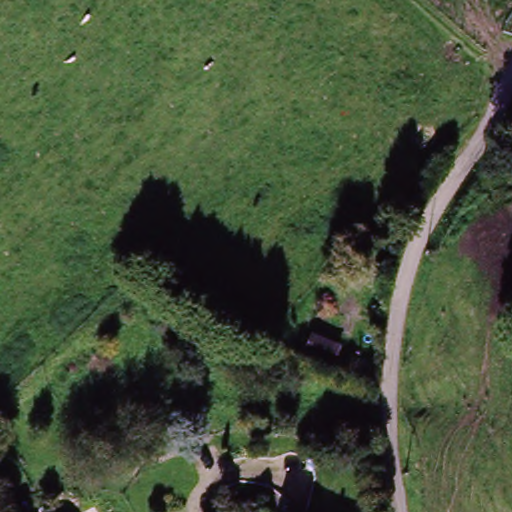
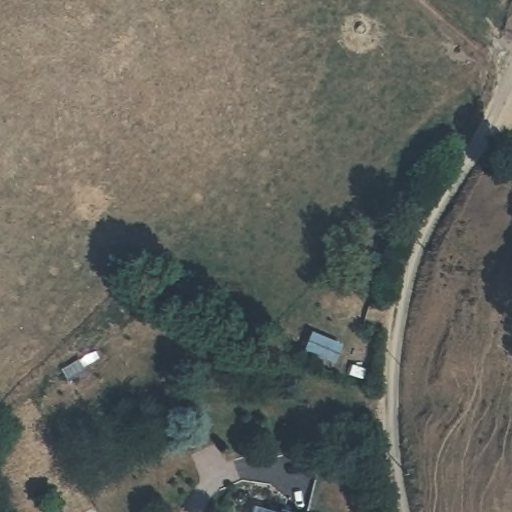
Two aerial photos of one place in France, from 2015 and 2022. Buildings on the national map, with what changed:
unchanged [(335,360),(318,354),(305,348),(312,331),(341,342),(336,357),(335,360)]

